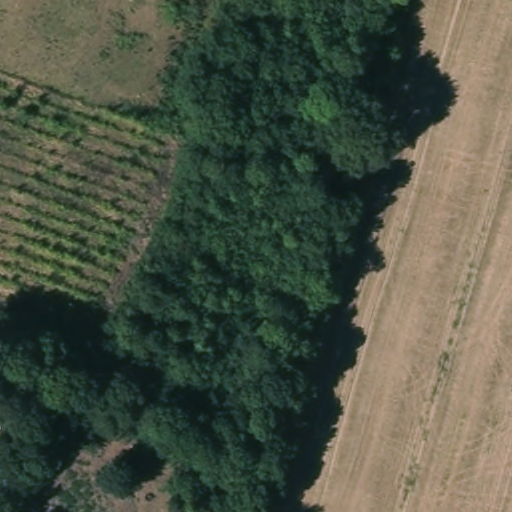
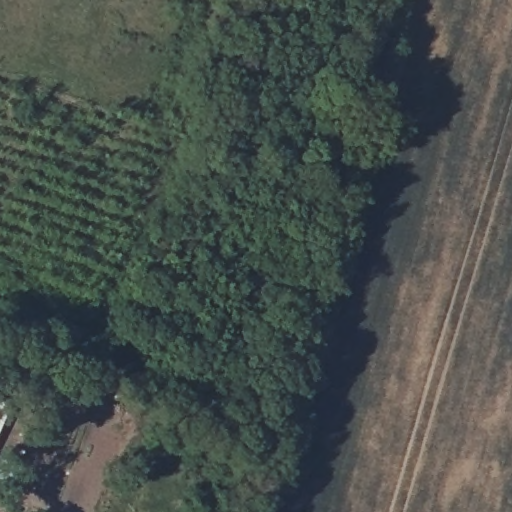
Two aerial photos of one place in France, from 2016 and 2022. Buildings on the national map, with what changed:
unchanged [(0,420),(0,407),(5,409),(0,420)]

